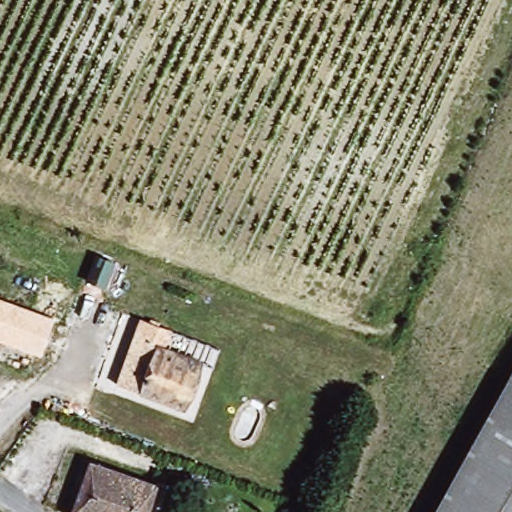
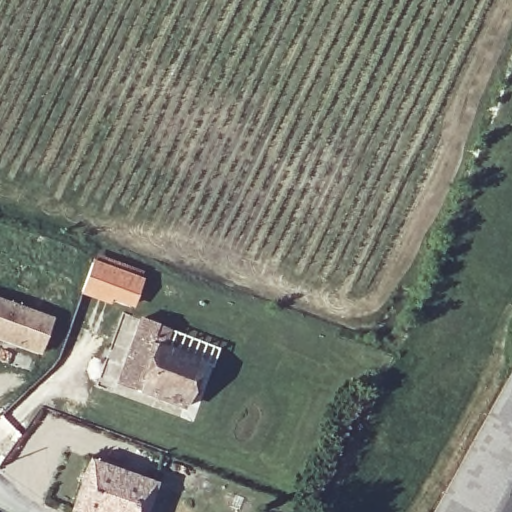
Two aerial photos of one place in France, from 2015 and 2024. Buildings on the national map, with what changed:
new [(81,294),(93,261),(96,254),(144,271),(132,306),(112,299),(108,304),(81,294)]
unchanged [(40,359),(0,345),(0,300),(54,318),(40,359)]
unchanged [(142,320),(222,350),(215,369),(207,366),(189,410),(177,406),(196,361),(135,337),(142,320)]
unchanged [(135,337),(196,361),(177,406),(115,382),(135,337)]
unchanged [(512,378),(512,512),(436,512),(512,378)]
unchanged [(95,459),(157,484),(146,512),(78,512),(74,511),(95,459)]

